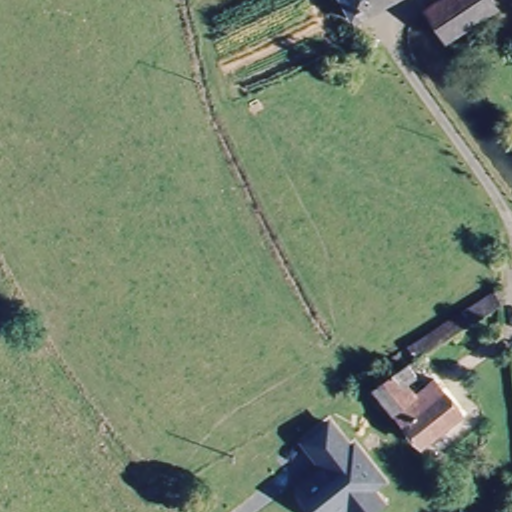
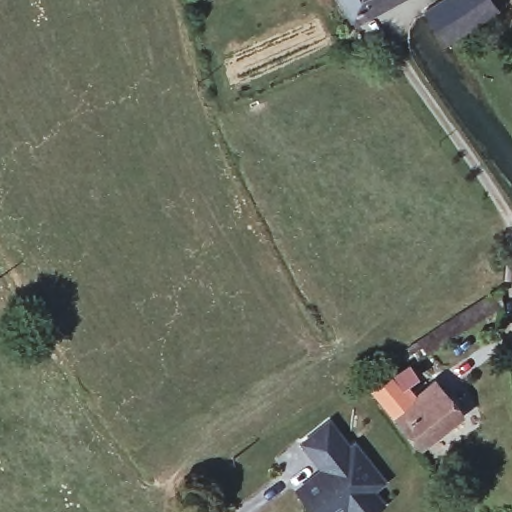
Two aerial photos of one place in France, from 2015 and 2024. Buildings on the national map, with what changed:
unchanged [(365,2),(352,10),(347,0),(369,0),(365,2)]
unchanged [(436,0),(492,0),(497,7),(444,44),(422,10),(436,0)]
unchanged [(505,282),(507,298),(415,360),(407,348),(505,282)]
unchanged [(406,370),(414,380),(397,392),(406,405),(432,388),(456,420),(419,451),(386,412),(379,416),(364,399),(406,370)]
unchanged [(344,512),(313,512),(312,511),(300,496),(297,492),(322,472),(301,446),(325,426),(346,452),(351,448),(379,483),(368,492),(379,505),(371,512),(346,512),(345,511),(344,512)]

